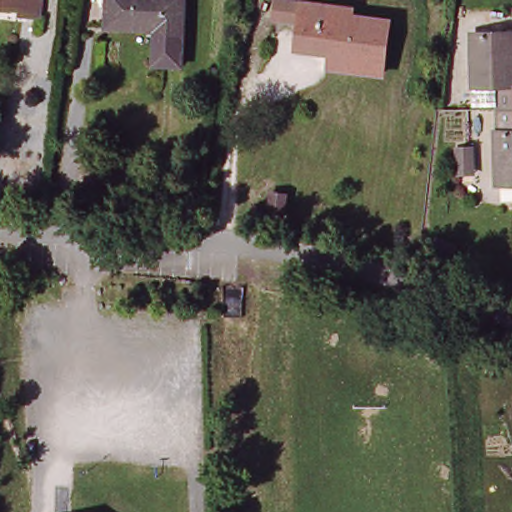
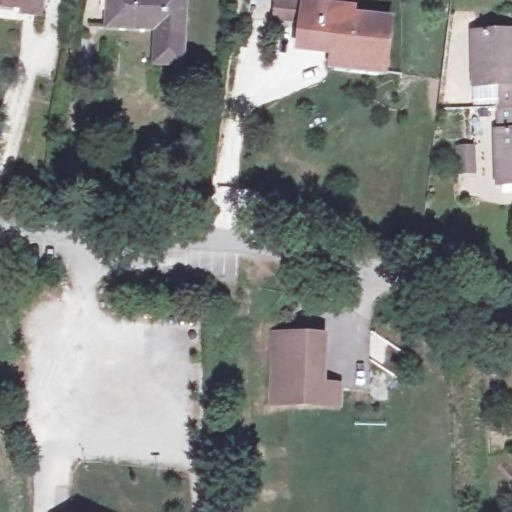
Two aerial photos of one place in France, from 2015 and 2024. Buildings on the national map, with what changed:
unchanged [(42,0),(39,26),(20,24),(20,18),(0,16),(0,0),(42,0)]
unchanged [(161,65),(161,27),(112,26),(112,0),(190,0),(187,65),(161,65)]
unchanged [(385,76),(334,71),(335,55),(302,51),(303,27),(278,25),(280,2),(342,9),(355,10),(353,21),(391,26),(385,76)]
unchanged [(501,131),(503,131),(503,87),(477,87),(477,34),(512,33),(512,186),(502,186),(501,131)]
unchanged [(448,136),(462,137),(462,164),(448,164),(448,136)]
demolished [(29,301),(28,285),(45,287),(46,301),(29,301)]
new [(270,408),(273,331),(329,332),(328,382),(345,383),(343,410),(270,408)]

